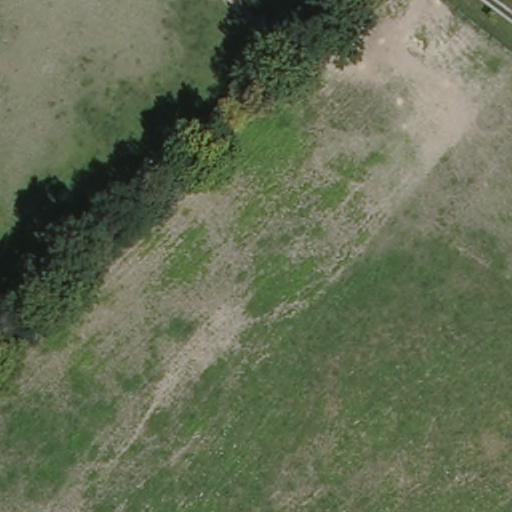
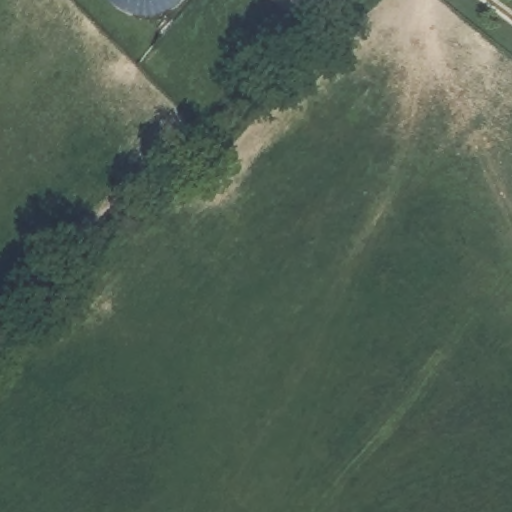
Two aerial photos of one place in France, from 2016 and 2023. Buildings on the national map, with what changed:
new [(183,4),(175,10),(166,15),(157,18),(147,19),(137,18),(127,15),(119,10),(111,4),(108,0),(186,0),(183,4)]

